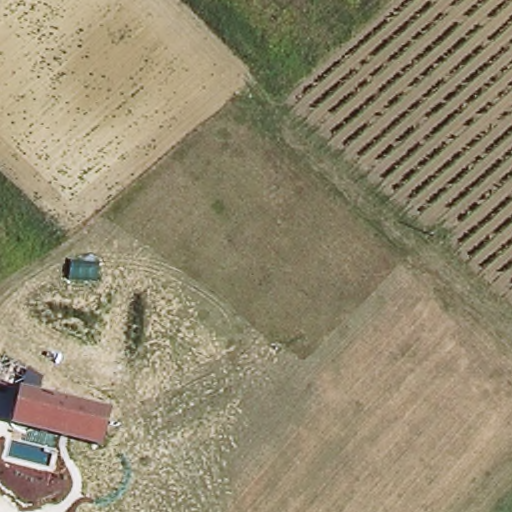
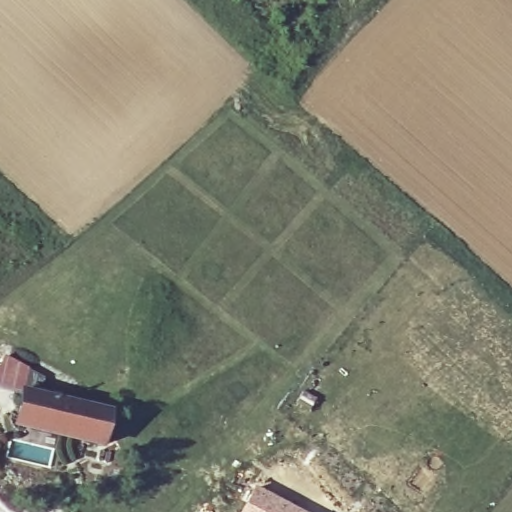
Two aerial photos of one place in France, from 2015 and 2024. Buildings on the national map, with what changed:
unchanged [(19,388),(113,408),(104,446),(10,428),(19,388)]
new [(306,512),(239,512),(254,484),(306,512)]

